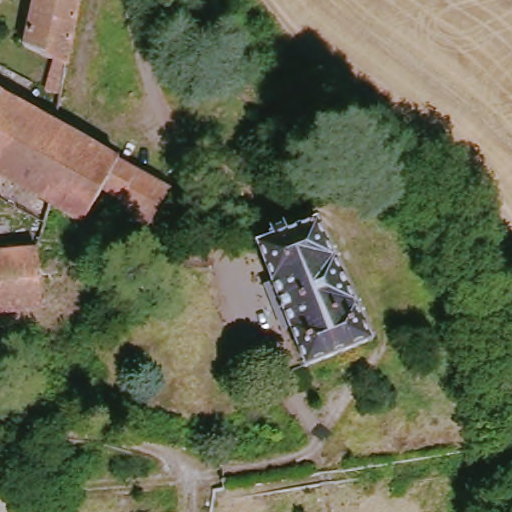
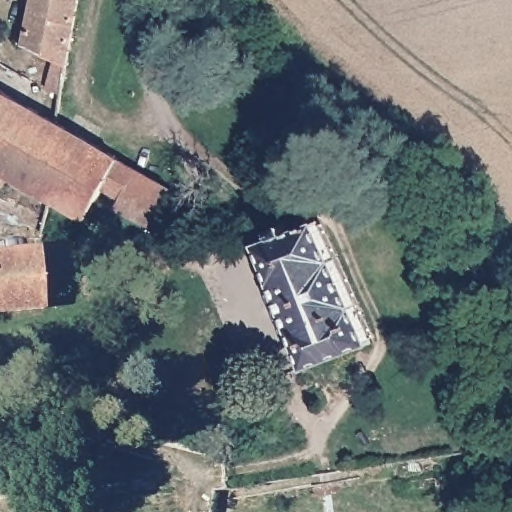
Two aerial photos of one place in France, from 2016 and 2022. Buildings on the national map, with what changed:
unchanged [(59,92),(43,87),(47,54),(20,41),(29,0),(74,0),(59,92)]
unchanged [(22,172),(0,161),(0,81),(53,113),(22,172)]
unchanged [(114,147),(100,171),(82,205),(52,188),(22,172),(53,113),(114,147)]
unchanged [(170,177),(150,215),(112,192),(117,182),(100,171),(114,147),(170,177)]
unchanged [(270,236),(267,229),(282,223),(284,230),(294,226),(292,222),(303,217),(305,221),(315,216),(368,339),(304,367),(255,242),(270,236)]
unchanged [(0,272),(0,252),(36,248),(37,268),(0,272)]
unchanged [(37,268),(42,306),(0,311),(0,272),(37,268)]

